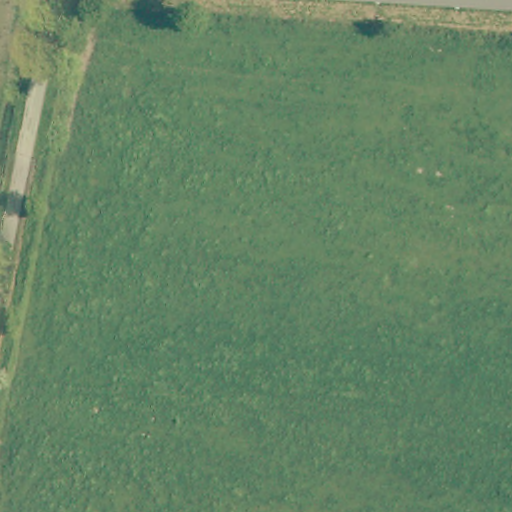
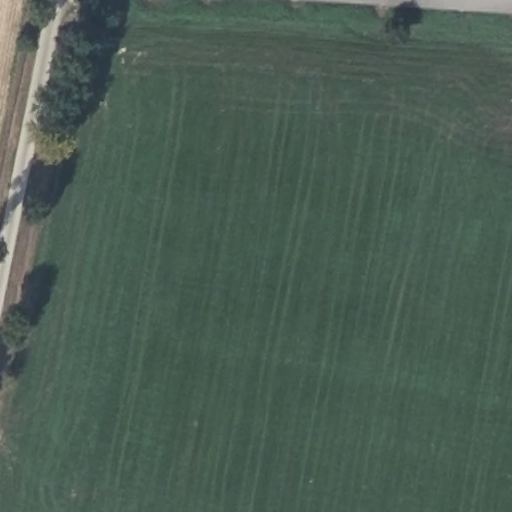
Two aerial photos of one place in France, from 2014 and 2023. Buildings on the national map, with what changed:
unchanged [(315,0),(512,0),(512,17),(315,0)]

